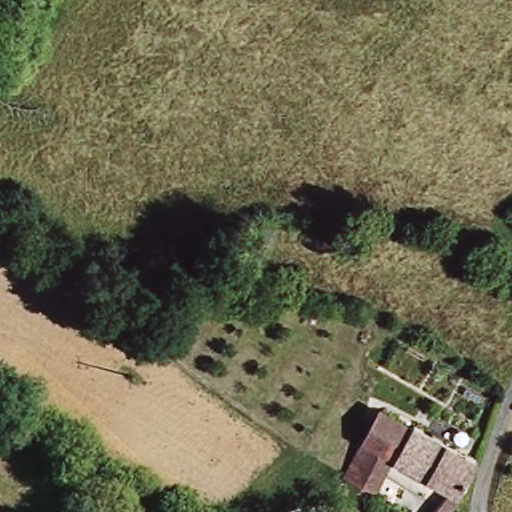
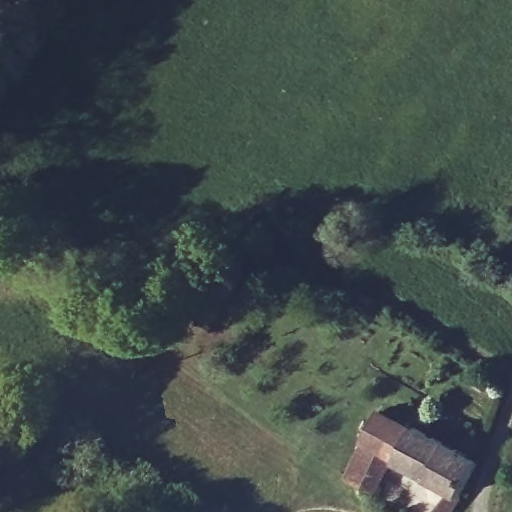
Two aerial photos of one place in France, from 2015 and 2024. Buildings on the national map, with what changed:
unchanged [(363,439),(378,409),(413,423),(395,457),(390,454),(363,439)]
unchanged [(448,486),(395,457),(413,423),(478,457),(458,492),(462,495),(452,512),(431,512),(448,486)]
unchanged [(390,454),(375,491),(343,476),(363,439),(390,454)]

